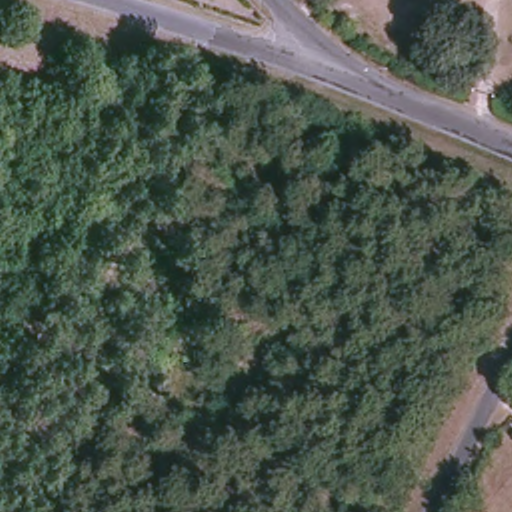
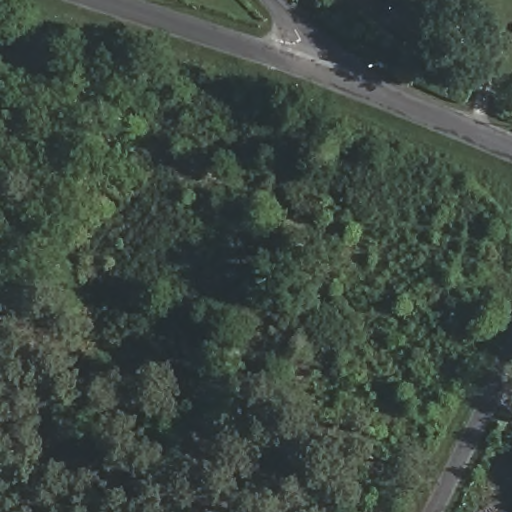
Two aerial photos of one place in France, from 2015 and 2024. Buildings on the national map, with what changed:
[]

